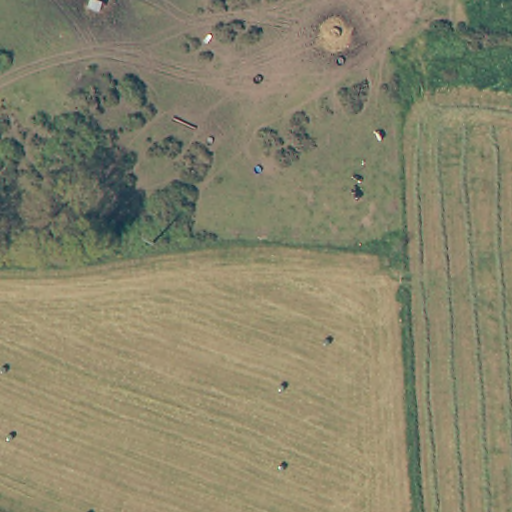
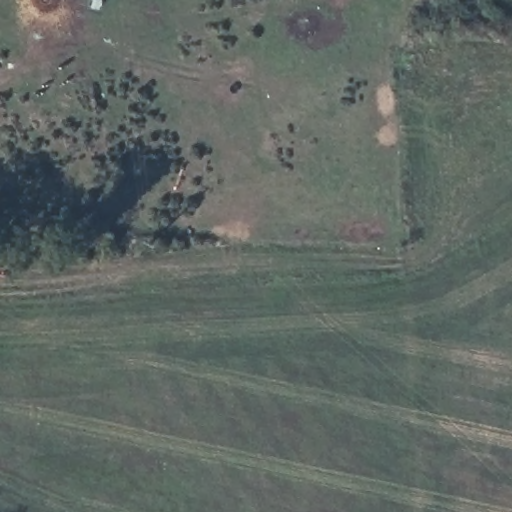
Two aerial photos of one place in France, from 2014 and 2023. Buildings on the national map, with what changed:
[]

